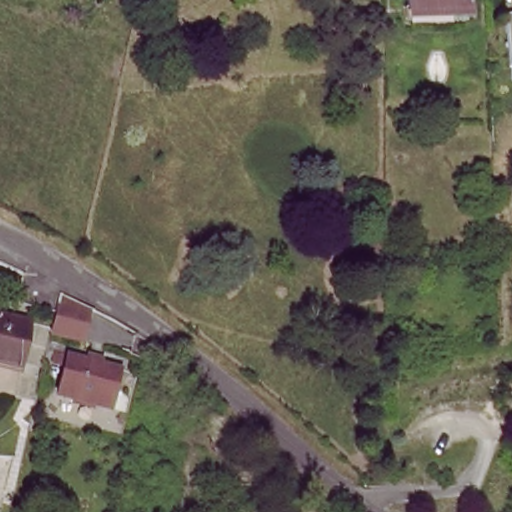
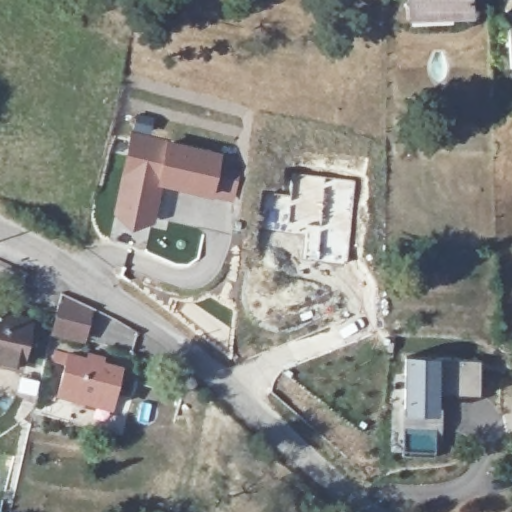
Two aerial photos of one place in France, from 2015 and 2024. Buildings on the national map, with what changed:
unchanged [(424,16),(424,11),(408,11),(407,0),(468,0),(468,15),(424,16)]
unchanged [(511,57),(510,12),(512,12),(512,56),(511,57)]
new [(153,225),(129,229),(113,212),(132,132),(168,141),(221,153),(218,165),(241,171),(233,202),(211,196),(158,185),(153,225)]
unchanged [(80,345),(46,336),(58,288),(93,305),(80,345)]
unchanged [(20,363),(0,359),(0,313),(29,320),(20,363)]
unchanged [(110,405),(93,401),(93,405),(73,400),(74,396),(58,391),(68,353),(86,358),(88,352),(101,356),(100,362),(119,367),(110,405)]
new [(478,399),(436,397),(433,458),(401,457),(405,358),(480,362),(478,399)]

